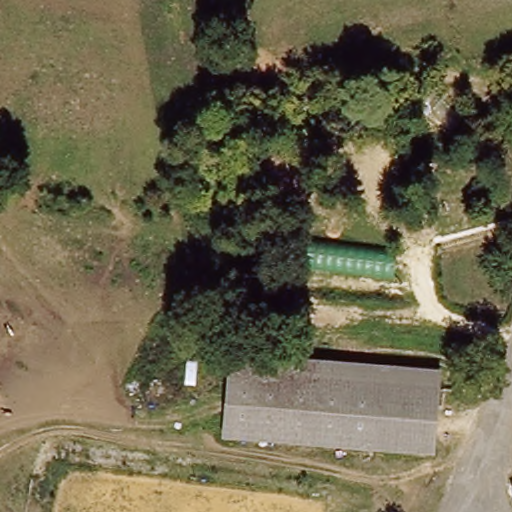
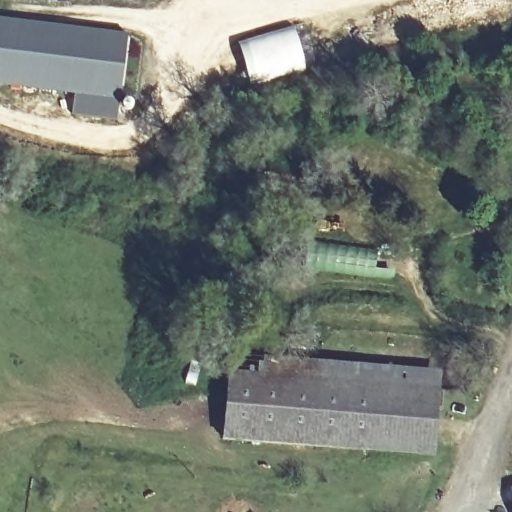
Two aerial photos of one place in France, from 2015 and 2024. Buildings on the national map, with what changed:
new [(0,83),(0,19),(129,35),(118,119),(74,115),(75,93),(0,83)]
new [(295,27),(308,70),(254,88),(240,44),(295,27)]
unchanged [(396,250),(392,278),(302,269),(306,239),(396,250)]
unchanged [(236,358),(372,371),(439,378),(438,392),(400,389),(324,382),(265,376),(234,372),(236,358)]
unchanged [(332,447),(225,437),(229,402),(234,372),(265,376),(324,382),(400,389),(438,392),(433,437),(431,457),(332,447)]
unchanged [(512,492),(512,501),(510,492),(512,492)]

